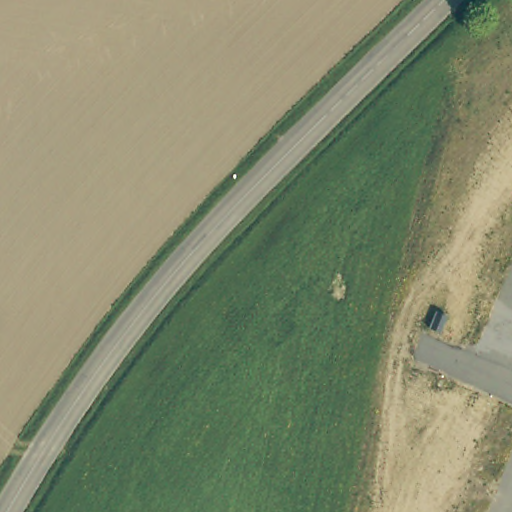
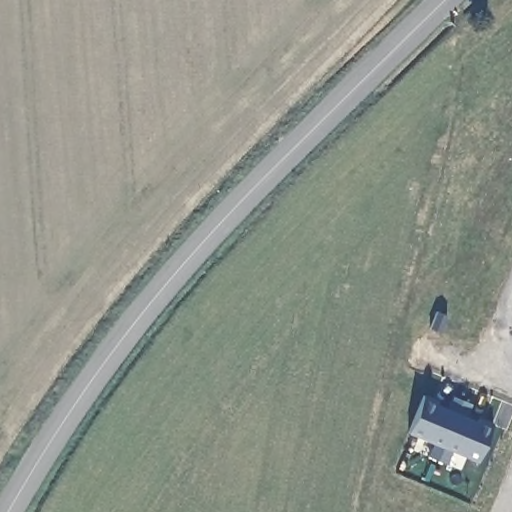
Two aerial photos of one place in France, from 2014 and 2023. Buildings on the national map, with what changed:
new [(436,312),(446,316),(438,333),(428,329),(436,312)]
new [(424,393),(439,400),(438,404),(448,408),(453,396),(472,403),(467,416),(478,420),(480,417),(493,422),(478,461),(453,451),(447,463),(429,455),(434,443),(409,432),(424,393)]

